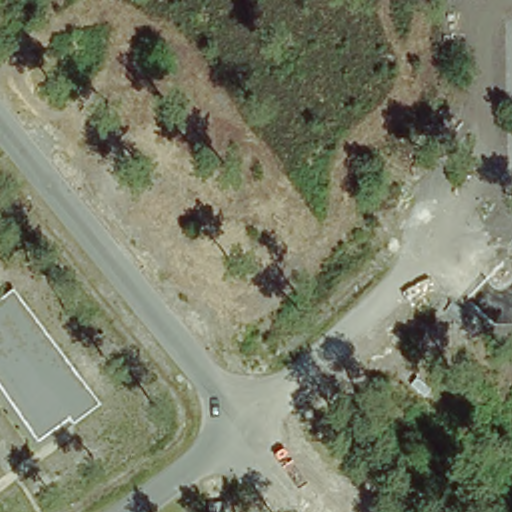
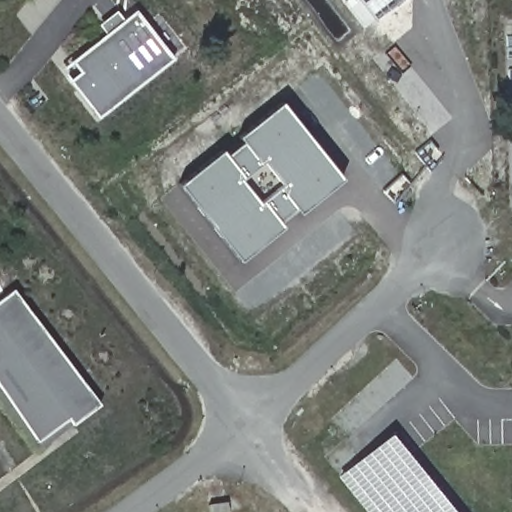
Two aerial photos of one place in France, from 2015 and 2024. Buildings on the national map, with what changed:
new [(373,20),(358,0),(398,0),(373,20)]
new [(97,120),(58,70),(135,10),(172,59),(97,120)]
new [(180,184),(219,152),(241,141),(238,137),(281,104),(340,178),(239,258),(180,184)]
unchanged [(39,449),(0,399),(0,299),(14,287),(102,405),(39,449)]
new [(454,512),(366,512),(338,476),(390,432),(454,512)]

